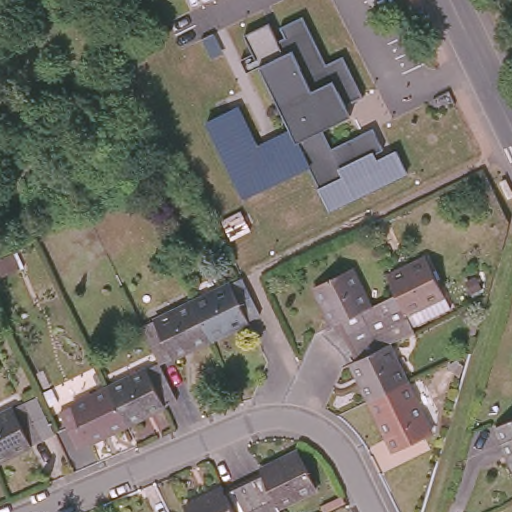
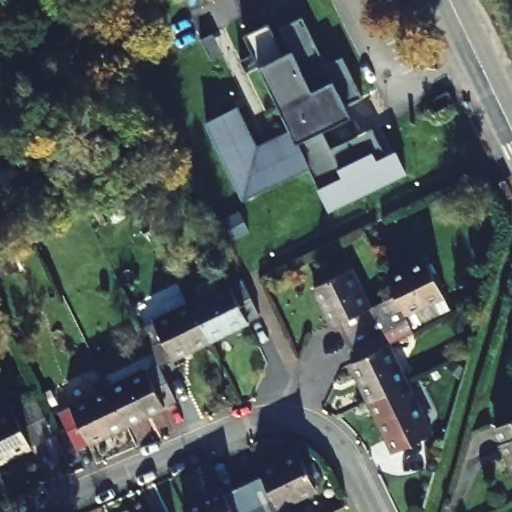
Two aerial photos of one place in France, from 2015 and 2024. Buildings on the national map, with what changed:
unchanged [(211,136),(200,115),(232,99),(242,121),(251,139),(284,122),(275,104),(237,27),(262,15),(271,32),(278,29),(273,19),(296,7),(320,55),(337,47),(347,68),(357,88),(339,97),(345,107),(316,121),(326,140),(366,120),(377,141),(368,145),(371,152),(390,142),(400,164),(323,202),(302,160),(238,190),(211,136)]
unchanged [(338,321),(331,324),(312,285),(349,266),(368,305),(393,293),(385,277),(423,258),(441,295),(402,313),(406,320),(411,332),(387,344),(405,382),(369,400),(350,361),(356,359),(351,348),(344,334),(338,321)]
unchanged [(183,301),(222,282),(235,276),(239,285),(254,315),(241,321),(202,340),(183,301)]
unchanged [(202,340),(167,356),(148,320),(183,301),(202,340)]
unchanged [(101,387),(141,368),(152,363),(170,398),(158,404),(119,423),(101,387)]
unchanged [(393,447),(386,435),(369,400),(405,382),(422,417),(428,430),(393,447)]
unchanged [(83,440),(65,405),(101,387),(119,423),(83,440)]
unchanged [(6,408),(19,402),(28,397),(48,435),(38,440),(24,446),(0,458),(0,411),(6,408)]
unchanged [(501,440),(512,435),(512,464),(507,453),(501,440)]
unchanged [(215,484),(217,489),(231,482),(244,476),(250,473),(256,470),(254,465),(293,446),(311,483),(271,502),(275,512),(185,512),(180,501),(215,484)]

